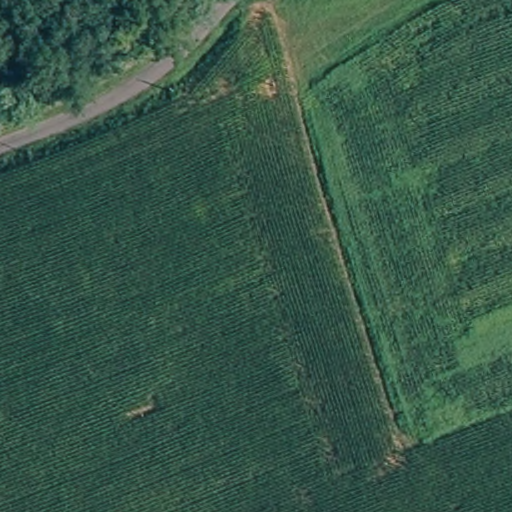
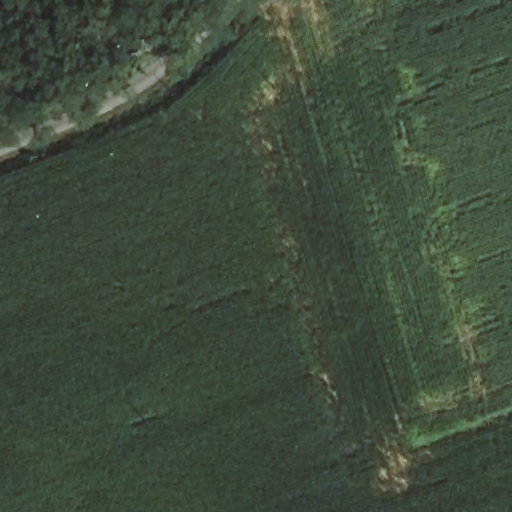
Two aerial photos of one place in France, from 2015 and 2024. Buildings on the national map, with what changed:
[]

